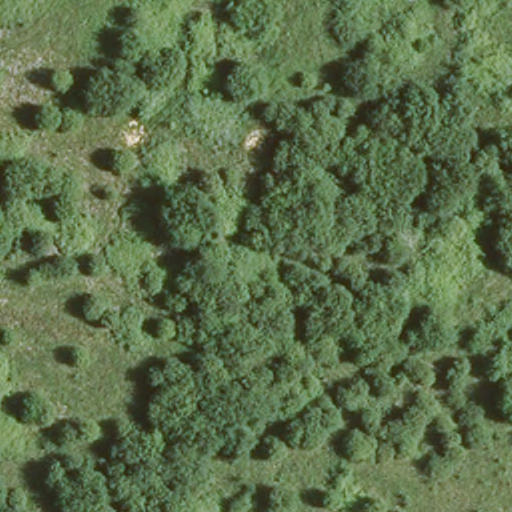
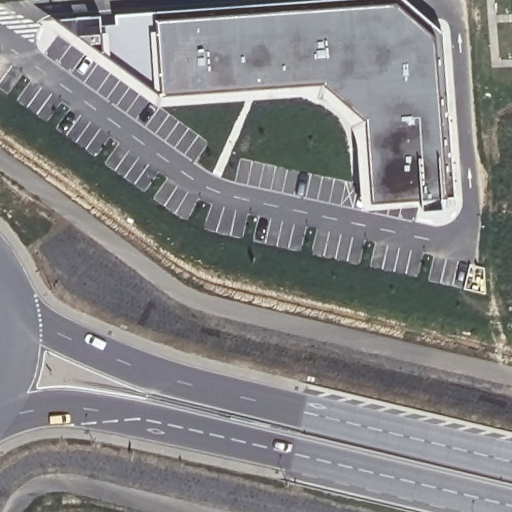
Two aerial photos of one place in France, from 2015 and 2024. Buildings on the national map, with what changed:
new [(101,15),(101,25),(116,23),(115,14),(310,0),(405,0),(443,30),(453,195),(443,196),(444,206),(422,207),(421,205),(362,209),(357,142),(353,128),(348,120),(333,106),(322,99),(305,94),(157,105),(41,21),(56,18),(101,15)]

